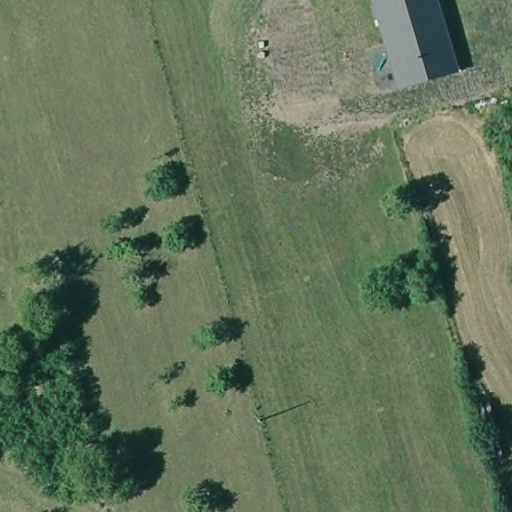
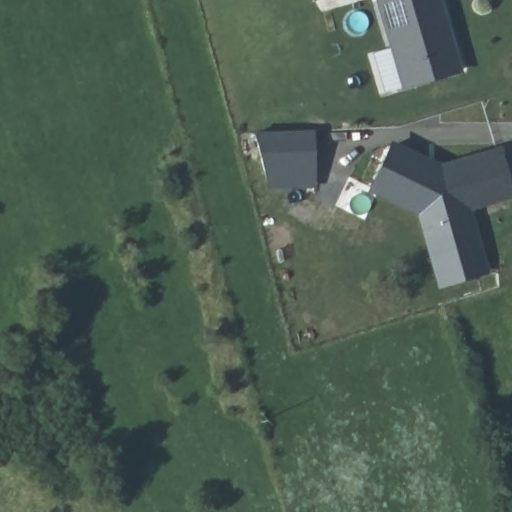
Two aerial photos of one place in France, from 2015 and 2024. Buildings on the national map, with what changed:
new [(377,1),(376,0),(377,0),(377,1)]
new [(450,73),(402,87),(390,47),(377,0),(437,0),(445,31),(457,71),(450,73)]
new [(314,129),(315,152),(317,188),(266,190),(257,152),(254,132),(314,129)]
new [(438,288),(420,216),(368,191),(394,142),(442,161),(502,147),(512,182),(512,199),(472,210),(489,273),(438,288)]

